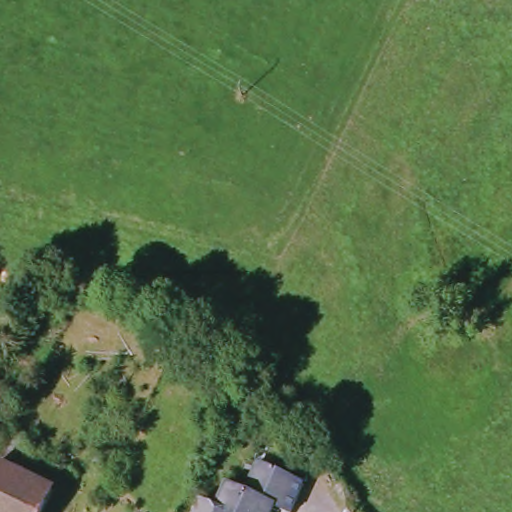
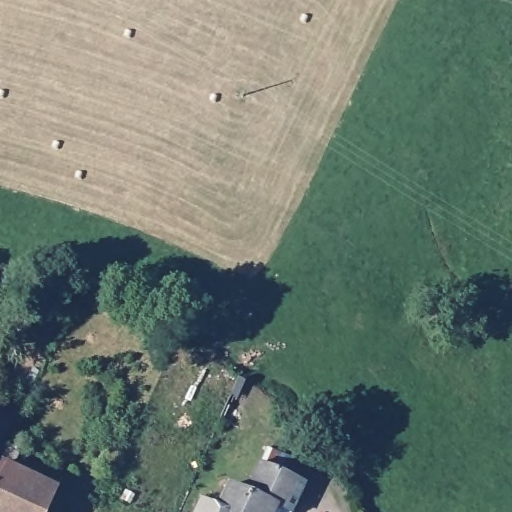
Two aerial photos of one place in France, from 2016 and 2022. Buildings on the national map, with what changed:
unchanged [(20,481),(57,501),(51,512),(0,512),(0,488),(24,445),(36,452),(20,481)]
unchanged [(292,512),(268,512),(250,502),(268,471),(299,490),(304,493),(292,512)]
unchanged [(268,512),(237,512),(245,498),(250,502),(268,512)]

